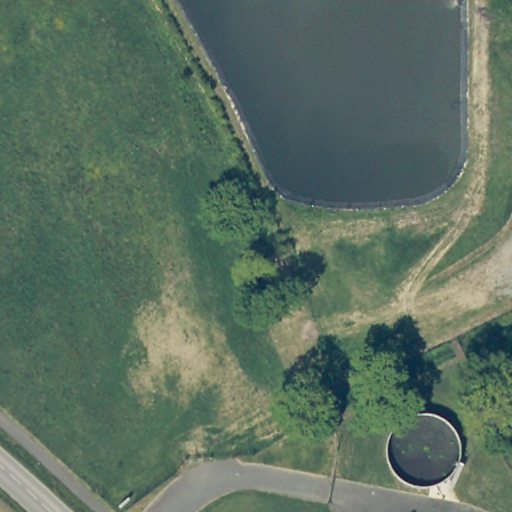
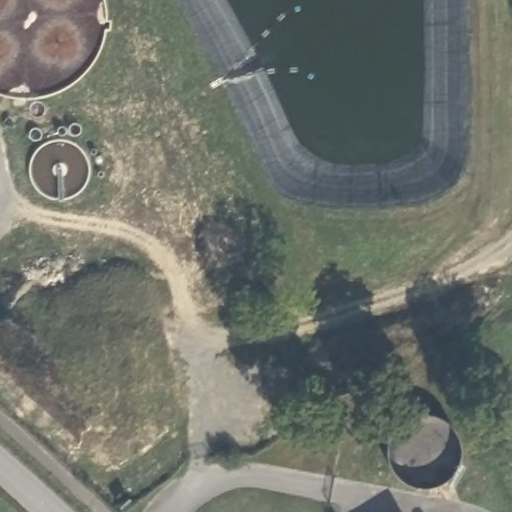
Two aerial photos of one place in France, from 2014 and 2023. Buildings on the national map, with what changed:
[]

